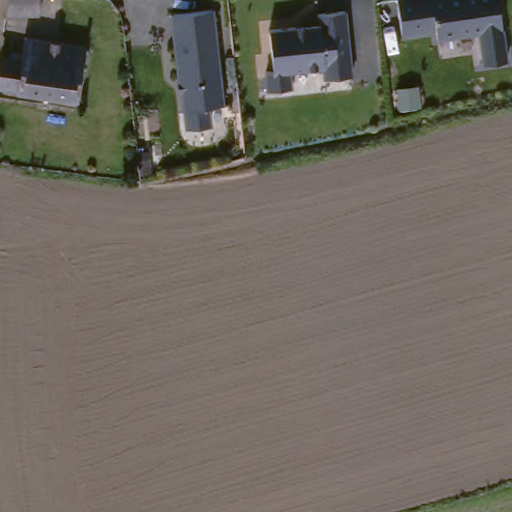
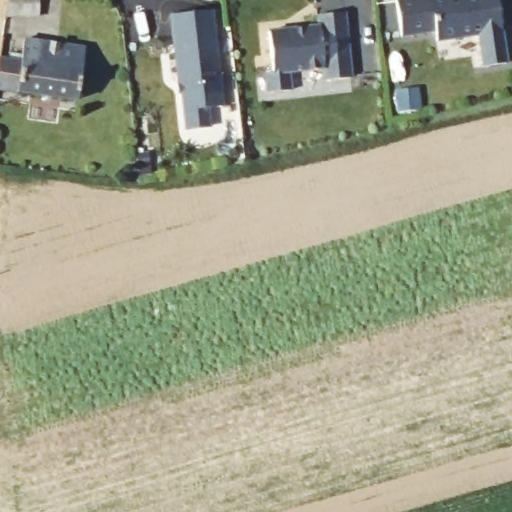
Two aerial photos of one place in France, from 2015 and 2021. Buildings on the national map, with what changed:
unchanged [(4,19),(6,0),(37,0),(36,18),(4,19)]
unchanged [(479,64),(474,38),(436,41),(436,31),(396,33),(393,0),(494,0),(504,63),(479,64)]
unchanged [(221,105),(206,105),(209,126),(184,128),(166,14),(209,9),(221,105)]
unchanged [(316,23),(315,14),(342,11),(352,76),(321,80),(321,69),(289,71),(291,90),(262,91),(260,71),(270,71),(265,29),(316,23)]
unchanged [(9,55),(21,58),(23,42),(83,49),(75,102),(0,90),(0,61),(7,60),(9,55)]

